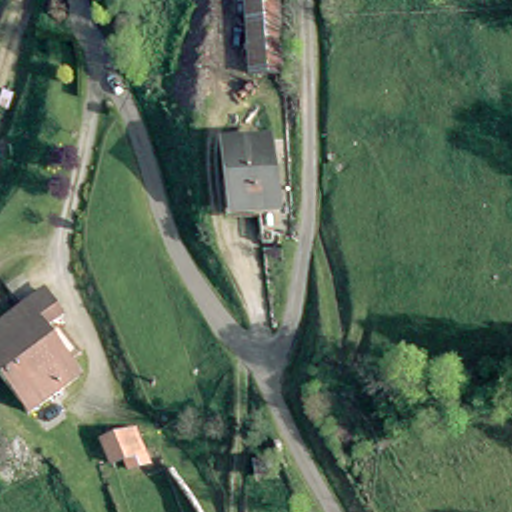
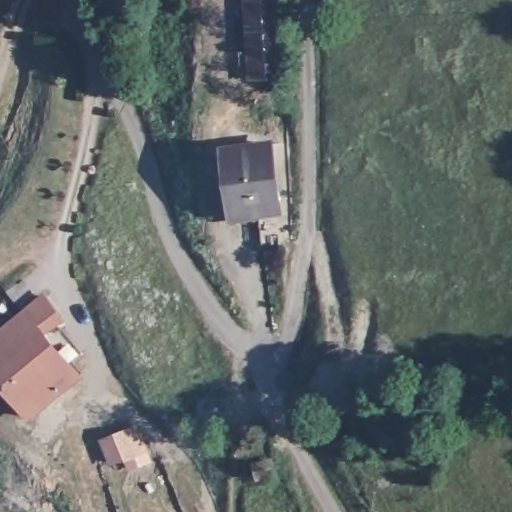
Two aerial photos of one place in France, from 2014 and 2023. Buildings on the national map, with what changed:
unchanged [(277,81),(245,81),(243,26),(243,0),(275,0),(275,27),(277,81)]
unchanged [(225,207),(220,146),(264,143),(269,209),(245,211),(225,212),(225,207)]
unchanged [(32,415),(0,380),(0,328),(37,296),(38,294),(57,316),(38,332),(77,374),(32,415)]
unchanged [(157,467),(125,480),(117,459),(107,463),(98,441),(120,432),(129,428),(139,424),(157,467)]

